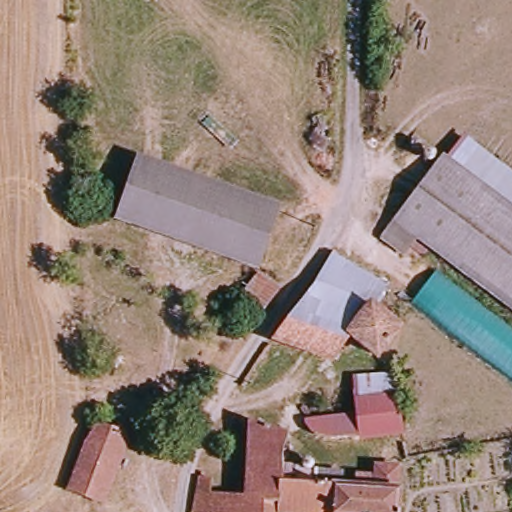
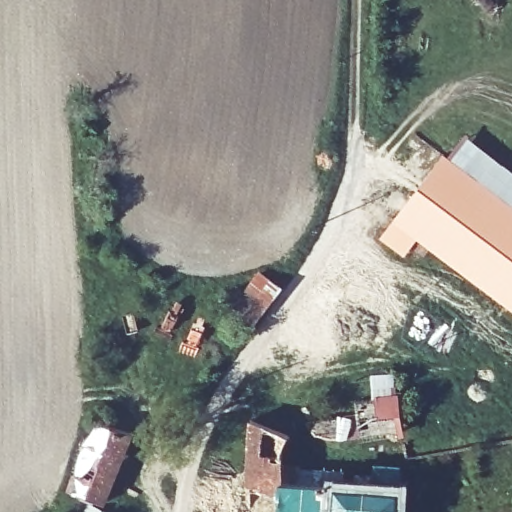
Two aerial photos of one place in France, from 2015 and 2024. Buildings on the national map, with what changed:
unchanged [(512,171),(512,312),(416,241),(403,259),(379,242),(464,134),(512,171)]
demolished [(277,211),(255,270),(115,219),(137,159),(277,211)]
demolished [(331,256),(381,277),(373,310),(309,292),(331,256)]
demolished [(512,330),(512,377),(413,304),(435,272),(512,330)]
unchanged [(274,294),(275,294),(250,330),(246,328),(230,317),(229,317),(246,292),(255,280),(274,294)]
demolished [(302,290),(309,292),(373,310),(375,310),(402,328),(377,363),(345,342),(333,362),(275,336),(302,290)]
unchanged [(358,443),(311,442),(306,421),(352,419),(352,377),(385,376),(403,440),(358,443)]
unchanged [(209,479),(207,492),(233,494),(232,484),(245,485),(249,422),(285,434),(283,488),(370,490),(371,470),(394,471),(393,489),(397,493),(396,512),(190,512),(196,478),(209,479)]
unchanged [(101,504),(70,490),(77,468),(85,446),(95,433),(95,424),(129,436),(101,504)]

